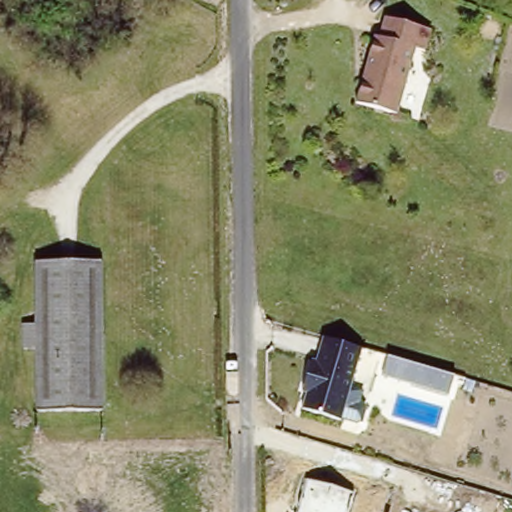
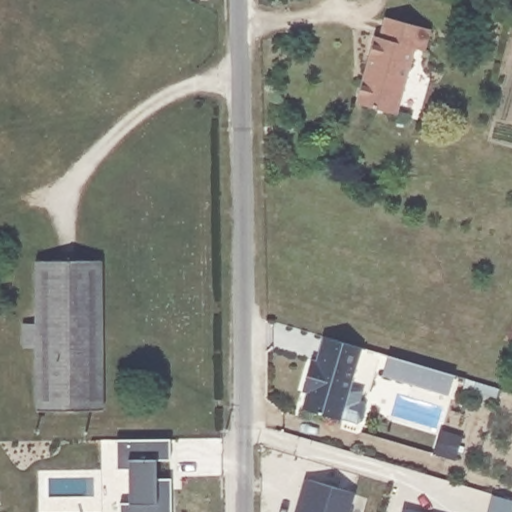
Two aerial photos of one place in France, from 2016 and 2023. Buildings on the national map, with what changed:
unchanged [(374,35),(379,37),(386,14),(434,29),(427,52),(417,49),(397,114),(354,100),(374,35)]
unchanged [(30,320),(41,320),(40,258),(107,258),(107,334),(30,335),(30,320)]
unchanged [(44,355),(44,349),(29,348),(29,342),(30,335),(107,334),(107,407),(44,355)]
unchanged [(342,418),(302,406),(310,381),(305,380),(312,358),(315,359),(323,334),(364,346),(342,418)]
unchanged [(381,376),(387,354),(455,374),(448,395),(381,376)]
unchanged [(107,407),(107,409),(43,409),(44,355),(107,407)]
new [(118,502),(128,500),(127,469),(116,470),(116,439),(170,439),(171,459),(157,459),(157,479),(170,479),(171,512),(119,512),(118,502)]
unchanged [(304,478),(352,492),(347,512),(294,512),(304,478)]
unchanged [(402,507),(422,512),(401,512),(402,507)]

